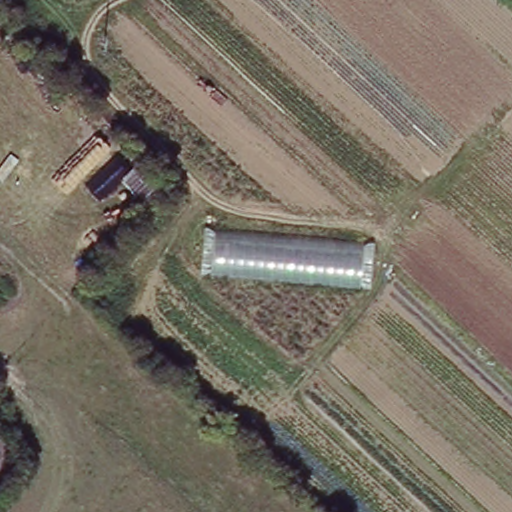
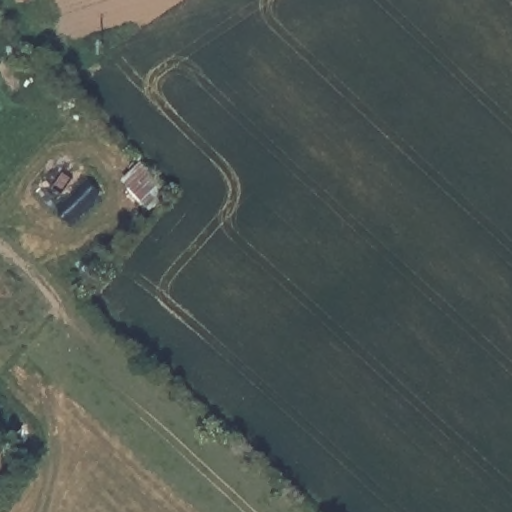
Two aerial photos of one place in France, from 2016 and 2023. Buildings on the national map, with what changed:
demolished [(67,2),(66,0),(72,0),(67,2)]
demolished [(68,102),(100,135),(85,147),(53,115),(68,102)]
demolished [(104,142),(129,170),(138,163),(165,192),(149,204),(122,178),(117,184),(88,155),(104,142)]
demolished [(373,290),(203,276),(206,229),(376,243),(373,290)]

